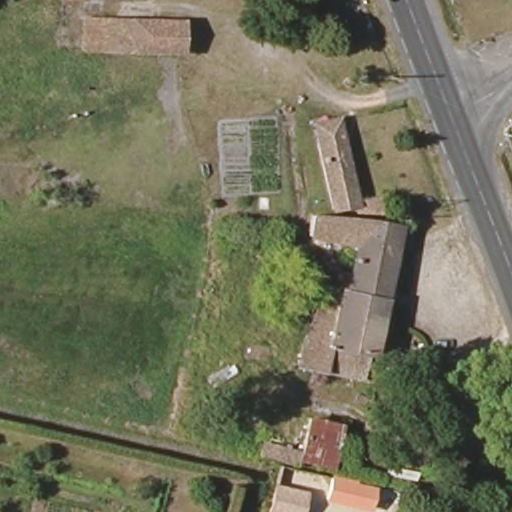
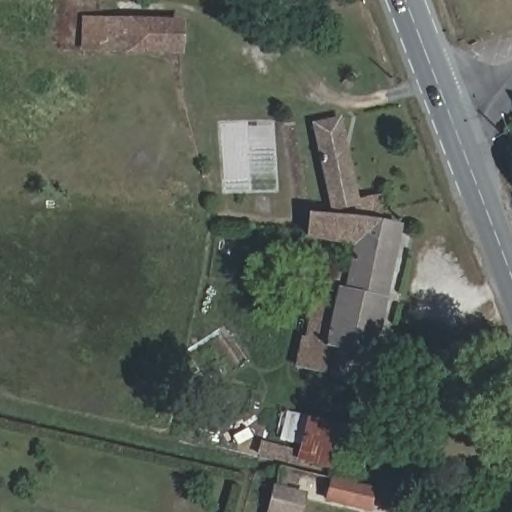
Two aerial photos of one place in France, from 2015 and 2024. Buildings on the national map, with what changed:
unchanged [(178,51),(81,48),(82,18),(179,21),(178,51)]
unchanged [(354,207),(377,203),(376,217),(354,216),(352,209),(329,214),(311,130),(335,125),(354,207)]
unchanged [(369,359),(361,358),(356,382),(325,376),(330,351),(326,350),(321,376),(295,371),(300,343),(304,344),(316,291),(326,294),(329,279),(346,282),(353,249),(305,241),(307,220),(359,224),(396,232),(369,359)]
unchanged [(262,455),(265,444),(302,454),(311,418),(342,426),(332,467),(301,459),(300,465),(262,455)]
unchanged [(388,512),(381,512),(325,500),(329,480),(392,494),(388,512)]
unchanged [(297,512),(266,512),(271,486),(301,493),(297,512)]

